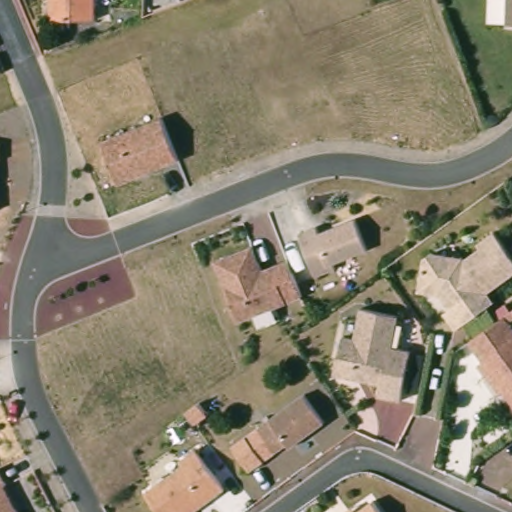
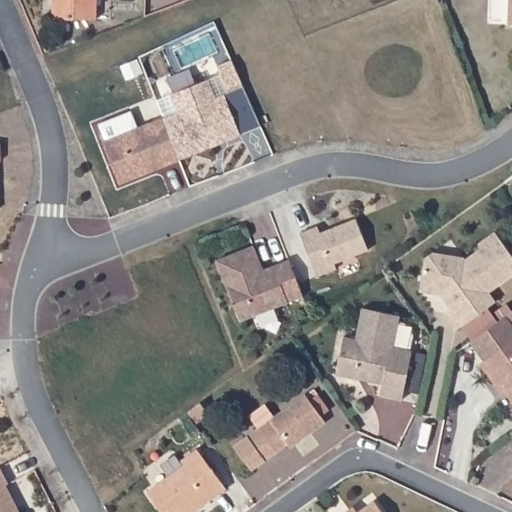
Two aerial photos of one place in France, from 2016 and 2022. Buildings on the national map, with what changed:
unchanged [(65,17),(65,0),(109,0),(108,19),(65,17)]
unchanged [(504,0),(512,0),(512,22),(501,21),(504,0)]
new [(176,112),(170,93),(209,79),(216,96),(227,91),(217,66),(231,60),(259,127),(241,135),(180,164),(160,120),(176,112)]
unchanged [(180,164),(119,184),(100,140),(160,120),(180,164)]
unchanged [(321,233),(356,222),(368,252),(333,265),(335,271),(315,277),(302,233),(319,229),(321,233)]
unchanged [(512,275),(490,291),(495,301),(455,327),(444,312),(450,307),(440,293),(420,292),(423,261),(434,254),(467,258),(482,247),(479,244),(493,234),(512,259),(512,275)]
unchanged [(302,297),(238,322),(217,262),(257,249),(262,270),(287,262),(302,297)]
unchanged [(355,337),(359,309),(401,317),(395,350),(410,352),(402,400),(381,396),(383,385),(336,376),(341,337),(355,337)]
unchanged [(488,362),(512,345),(512,390),(510,392),(497,376),(488,362)]
unchanged [(329,419),(294,445),(291,442),(279,451),(262,427),(308,392),(329,419)]
unchanged [(179,461),(195,449),(223,489),(191,512),(162,512),(145,492),(182,464),(179,461)]
unchanged [(18,512),(0,512),(0,471),(18,512)]
unchanged [(390,512),(347,512),(358,503),(362,510),(378,497),(390,512)]

